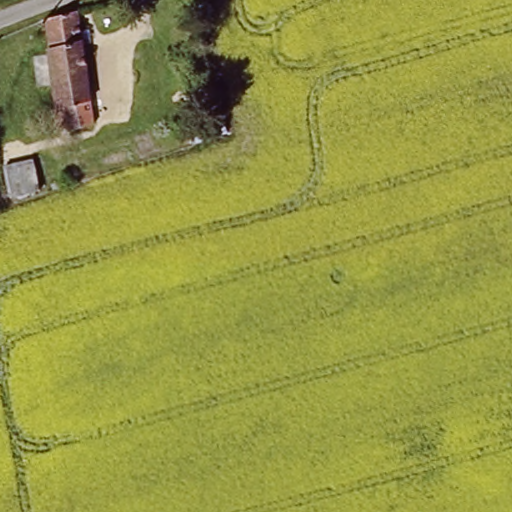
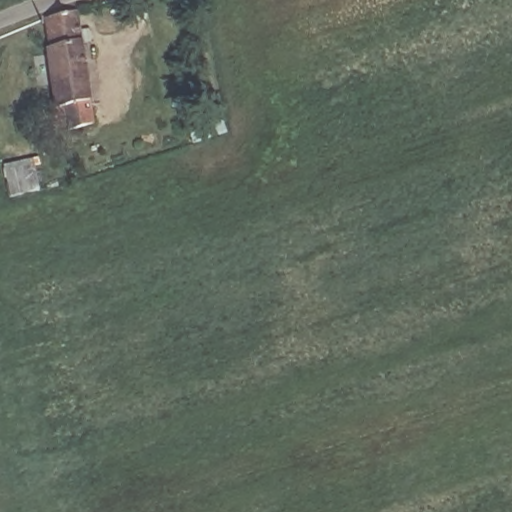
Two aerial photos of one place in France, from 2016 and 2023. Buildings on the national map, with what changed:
unchanged [(43,54),(45,51),(41,16),(47,16),(70,15),(84,125),(60,128),(58,106),(50,108),(43,54)]
unchanged [(37,185),(8,191),(2,162),(30,156),(37,185)]

